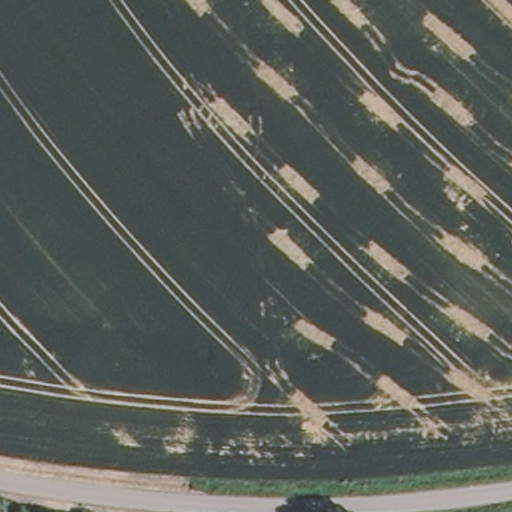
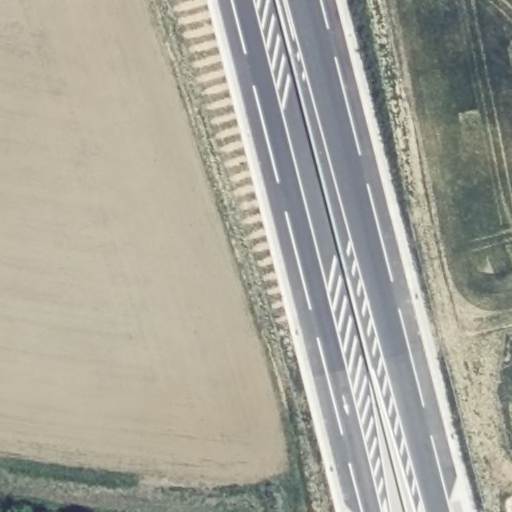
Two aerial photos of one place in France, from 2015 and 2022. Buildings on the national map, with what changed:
[]

